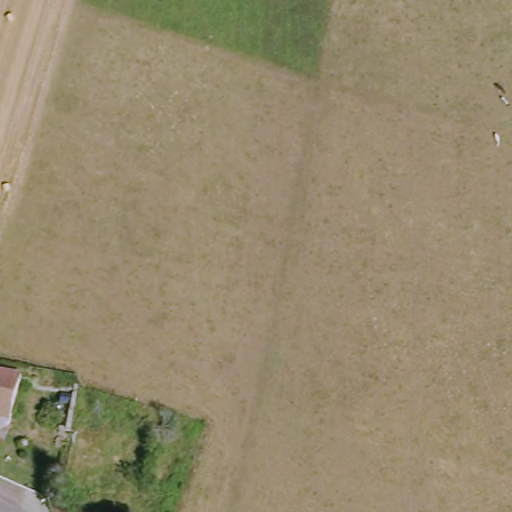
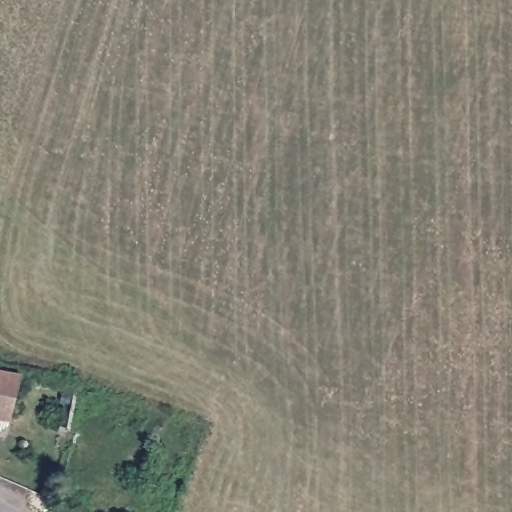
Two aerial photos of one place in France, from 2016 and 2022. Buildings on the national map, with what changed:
unchanged [(10,421),(0,428),(0,370),(18,375),(10,421)]

